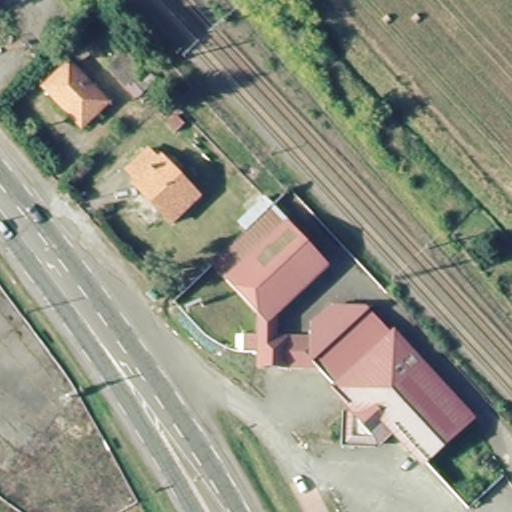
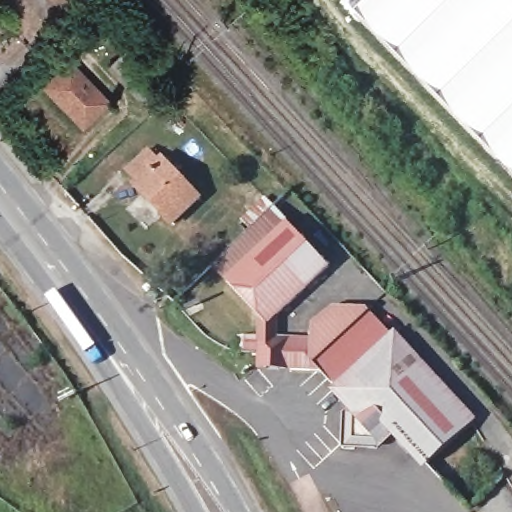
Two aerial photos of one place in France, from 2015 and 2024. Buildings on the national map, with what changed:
new [(496,154),(469,124),(453,111),(437,91),(410,67),(347,0),(512,0),(512,170),(496,154)]
unchanged [(145,83),(134,93),(108,65),(121,52),(149,79),(145,83)]
unchanged [(84,126),(48,86),(74,63),(110,101),(84,126)]
unchanged [(156,162),(161,159),(196,199),(169,223),(134,184),(136,181),(126,169),(146,151),(156,162)]
unchanged [(215,262),(250,229),(243,219),(267,198),(289,224),(228,277),(215,262)]
unchanged [(313,362),(321,371),(285,367),(286,359),(265,357),(265,349),(248,346),(250,334),(262,335),(261,313),(231,279),(292,224),(330,266),(279,315),(280,337),(297,339),(316,341),(319,327),(338,310),(368,313),(313,362)]
unchanged [(313,362),(368,313),(371,309),(375,314),(478,421),(469,429),(434,463),(398,426),(380,441),(366,444),(351,428),(352,416),(357,410),(350,402),(321,371),(313,362)]

